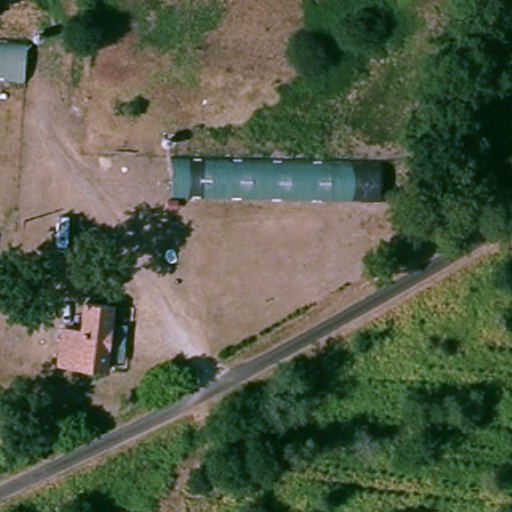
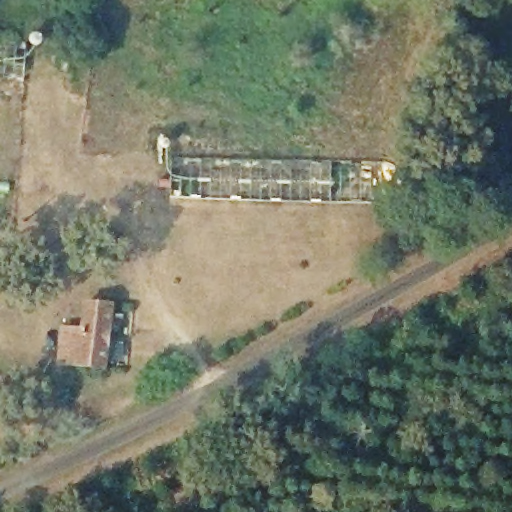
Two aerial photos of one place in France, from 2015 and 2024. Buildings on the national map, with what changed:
unchanged [(16,61),(15,73),(0,72),(0,38),(17,39),(16,61)]
unchanged [(381,210),(188,202),(172,202),(173,166),(197,167),(383,174),(381,210)]
unchanged [(71,250),(94,254),(91,271),(68,266),(71,250)]
unchanged [(89,293),(118,299),(104,373),(76,368),(89,293)]

